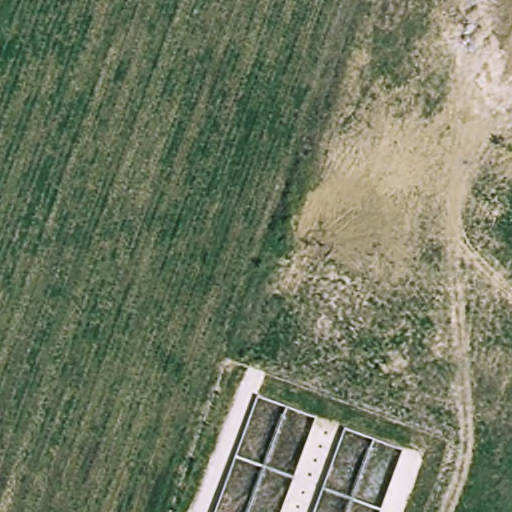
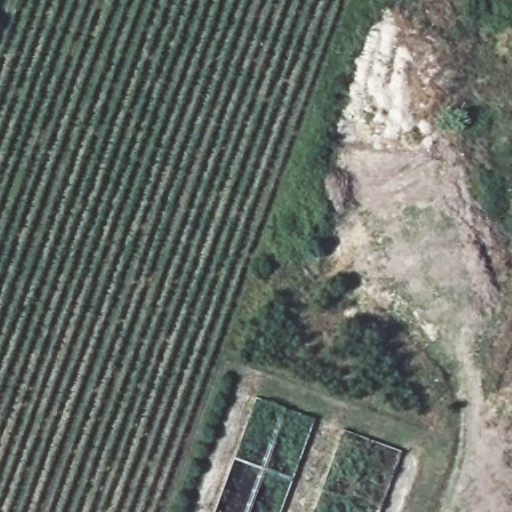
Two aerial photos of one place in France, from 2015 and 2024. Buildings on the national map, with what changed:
[]

